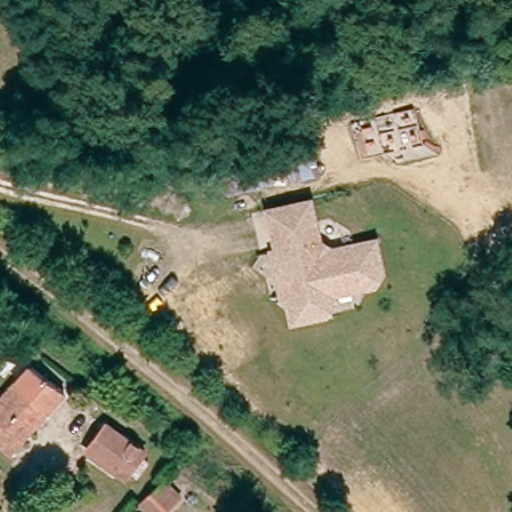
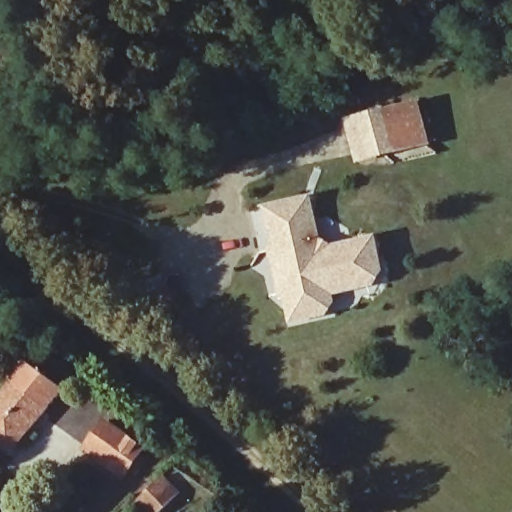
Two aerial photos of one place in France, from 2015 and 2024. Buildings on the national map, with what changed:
new [(431,144),(357,164),(346,119),(420,100),(431,144)]
unchanged [(280,314),(275,296),(286,277),(280,253),(265,257),(254,215),(297,204),(308,249),(316,253),(352,244),(362,241),(370,273),(363,287),(320,297),(323,306),(316,318),(298,323),(283,327),(280,314)]
unchanged [(10,455),(0,446),(0,406),(31,370),(65,395),(10,455)]
unchanged [(107,422),(145,449),(125,476),(88,448),(107,422)]
unchanged [(136,505),(148,493),(165,477),(180,494),(162,512),(143,512),(136,505)]

